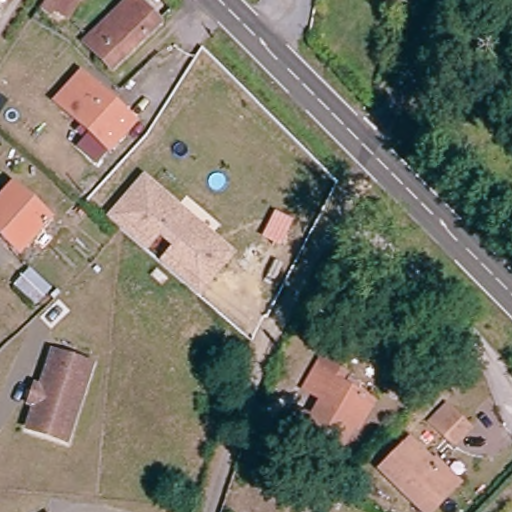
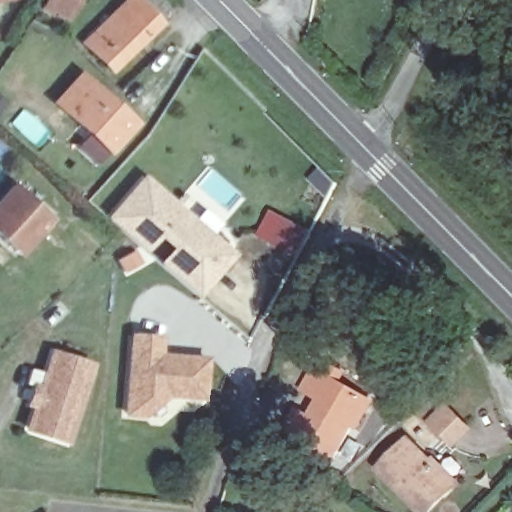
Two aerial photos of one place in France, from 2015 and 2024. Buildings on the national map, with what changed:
unchanged [(0,3),(0,0),(13,0),(0,3)]
unchanged [(62,18),(56,14),(51,22),(44,18),(46,13),(37,8),(43,0),(73,0),(62,18)]
unchanged [(127,0),(139,0),(160,22),(110,70),(84,41),(127,0)]
unchanged [(107,150),(57,103),(81,75),(134,122),(107,150)]
unchanged [(12,181),(49,214),(17,248),(0,231),(0,195),(12,181)]
unchanged [(229,255),(196,294),(176,276),(161,263),(175,247),(158,232),(144,249),(142,247),(120,228),(109,218),(140,181),(174,210),(177,206),(197,223),(195,226),(229,255)]
new [(312,231),(299,257),(258,236),(272,210),(312,231)]
new [(167,398),(145,417),(123,416),(131,333),(165,335),(163,353),(210,357),(206,399),(167,398)]
unchanged [(90,363),(65,440),(27,427),(51,351),(90,363)]
unchanged [(296,408),(310,416),(320,398),(302,387),(320,356),(337,367),(346,372),(342,381),(367,397),(373,401),(357,429),(351,425),(332,455),(299,435),(285,428),(296,408)]
unchanged [(445,406),(467,428),(452,443),(430,420),(445,406)]
unchanged [(407,442),(426,461),(434,453),(460,480),(452,488),(427,512),(423,512),(381,468),(407,442)]

